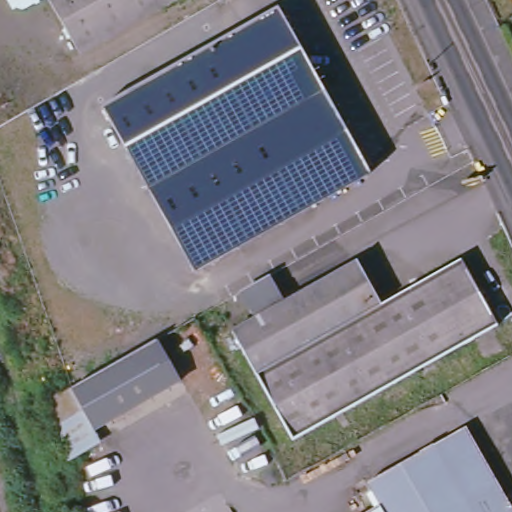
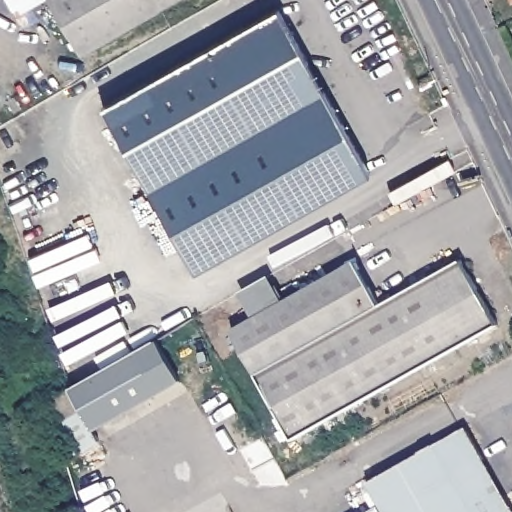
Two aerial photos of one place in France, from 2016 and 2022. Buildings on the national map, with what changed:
unchanged [(23,13),(20,10),(14,13),(7,0),(47,0),(47,1),(23,13)]
unchanged [(76,53),(47,0),(171,0),(76,53)]
unchanged [(101,107),(276,10),(367,174),(191,271),(101,107)]
unchanged [(358,264),(382,306),(462,262),(498,325),(295,440),(235,333),(263,317),(253,301),(248,291),(271,277),(277,287),(286,304),(358,264)]
unchanged [(54,407),(161,347),(183,386),(96,435),(103,446),(74,463),(61,431),(54,407)]
unchanged [(372,482),(465,430),(512,512),(374,512),(385,506),(372,482)]

